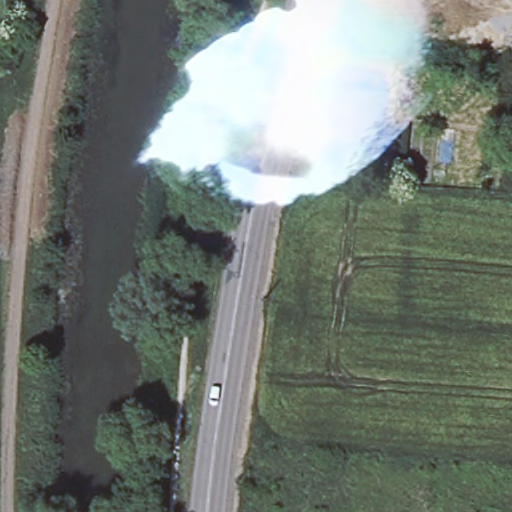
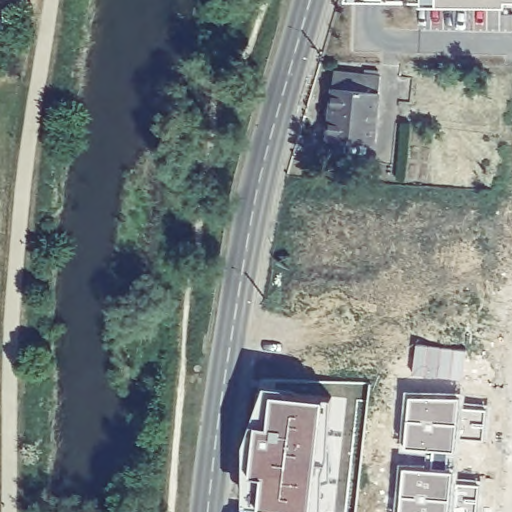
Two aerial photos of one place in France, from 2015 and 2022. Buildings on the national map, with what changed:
new [(344,0),(512,0),(512,5),(344,1),(344,0)]
unchanged [(382,73),(381,142),(329,139),(334,69),(382,73)]
new [(253,471),(259,420),(263,378),(370,382),(356,512),(257,512),(248,511),(253,471)]
new [(462,409),(485,412),(482,442),(456,441),(455,455),(448,454),(446,475),(452,475),(452,486),(476,488),(475,512),(396,512),(398,466),(430,468),(432,454),(400,452),(405,393),(463,397),(462,409)]

